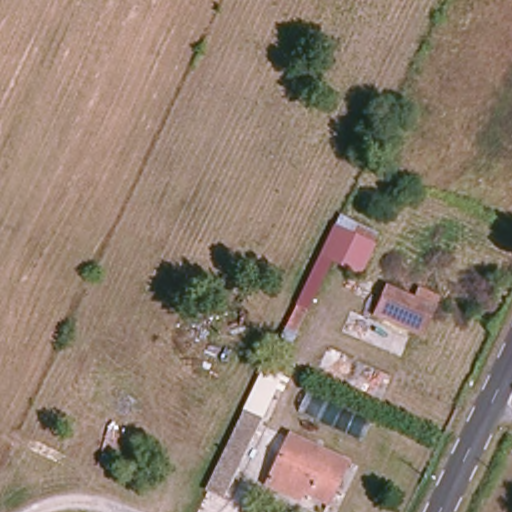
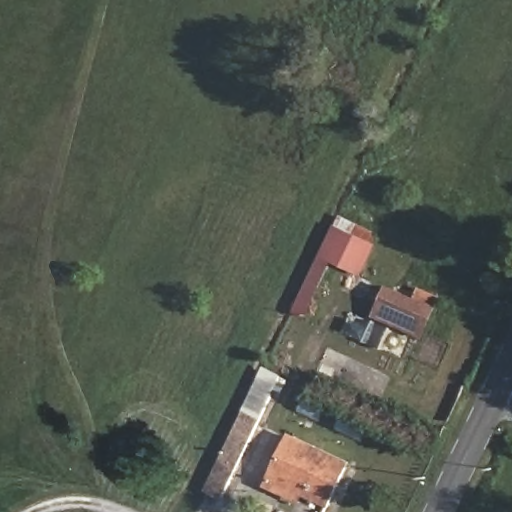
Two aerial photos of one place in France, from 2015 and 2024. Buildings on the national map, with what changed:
unchanged [(336,223),(372,239),(359,274),(330,262),(291,341),(282,338),(336,223)]
unchanged [(378,308),(386,287),(433,305),(427,330),(378,308)]
unchanged [(255,390),(275,397),(224,502),(205,494),(255,390)]
unchanged [(348,464),(330,506),(271,479),(290,436),(348,464)]

